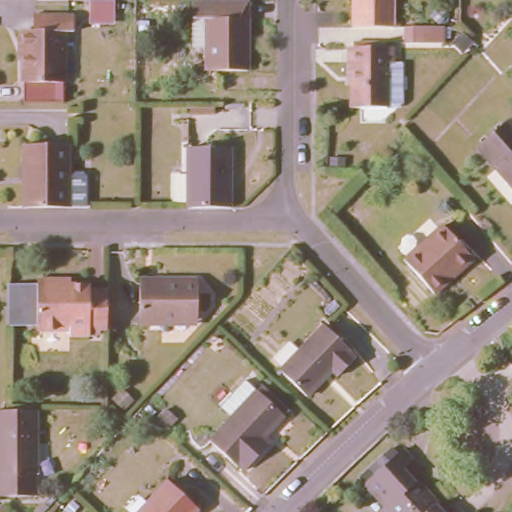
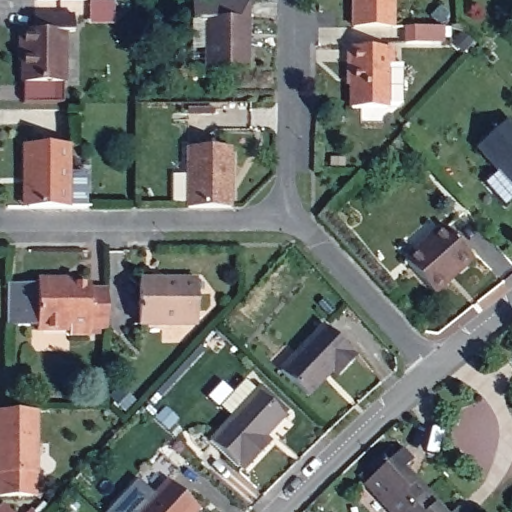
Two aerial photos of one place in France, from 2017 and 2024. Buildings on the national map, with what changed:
unchanged [(248,65),(206,65),(206,12),(191,13),(191,0),(247,0),(248,65)]
unchanged [(354,0),(391,0),(391,21),(354,21),(354,0)]
unchanged [(68,9),(69,26),(58,26),(58,76),(18,76),(18,25),(28,25),(28,9),(68,9)]
unchanged [(392,41),(392,59),(386,59),(386,102),(351,102),(351,71),(349,71),(348,41),(392,41)]
unchanged [(512,192),(471,146),(502,119),(512,131),(512,192)]
unchanged [(186,141),(230,141),(231,202),(186,202),(186,141)]
unchanged [(18,172),(18,144),(63,144),(64,207),(23,207),(18,207),(18,172)]
unchanged [(434,293),(404,258),(442,225),(473,258),(457,272),(448,280),(434,293)]
unchanged [(84,330),(64,330),(64,324),(31,324),(32,281),(32,275),(51,275),(65,275),(65,280),(84,280),(84,285),(103,285),(102,322),(84,323),(84,330)]
unchanged [(164,281),(164,279),(196,279),(196,320),(166,320),(166,323),(139,323),(139,281),(164,281)]
unchanged [(32,281),(31,324),(6,321),(5,281),(32,281)]
unchanged [(344,345),(343,347),(349,353),(333,370),(326,365),(301,391),(274,365),(318,319),(344,345)]
unchanged [(264,437),(239,464),(233,458),(231,460),(204,435),(225,412),(213,401),(238,375),(249,385),(253,380),(281,406),(278,410),(258,431),(264,437)]
unchanged [(32,473),(30,472),(31,495),(0,495),(0,410),(1,410),(31,410),(32,473)]
unchanged [(425,492),(402,512),(390,512),(363,483),(401,448),(411,461),(404,468),(425,492)]
unchanged [(192,508),(188,512),(132,512),(163,480),(192,508)]
unchanged [(402,512),(425,492),(443,512),(402,512)]
unchanged [(459,512),(450,512),(455,508),(459,512)]

